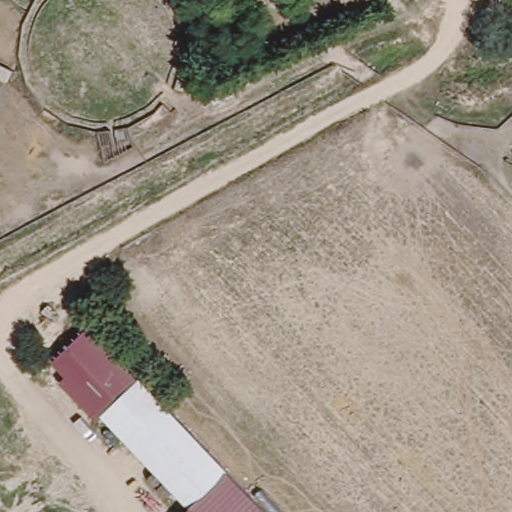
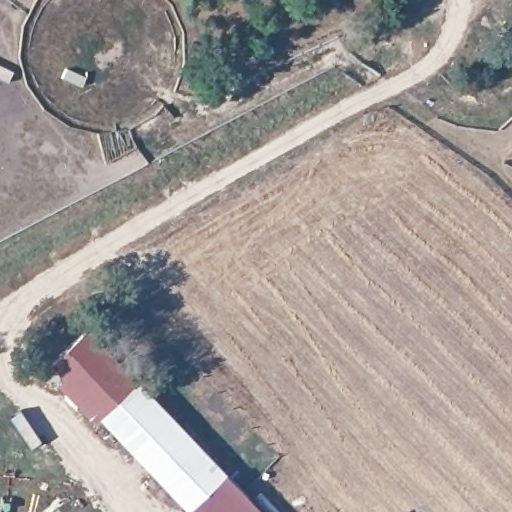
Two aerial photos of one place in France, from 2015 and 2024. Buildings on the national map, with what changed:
unchanged [(243,6),(239,0),(255,0),(243,6)]
unchanged [(88,329),(139,384),(98,420),(62,380),(66,376),(55,363),(88,329)]
unchanged [(228,479),(191,512),(189,512),(98,420),(139,384),(228,479)]
unchanged [(191,512),(228,479),(259,512),(191,512)]

